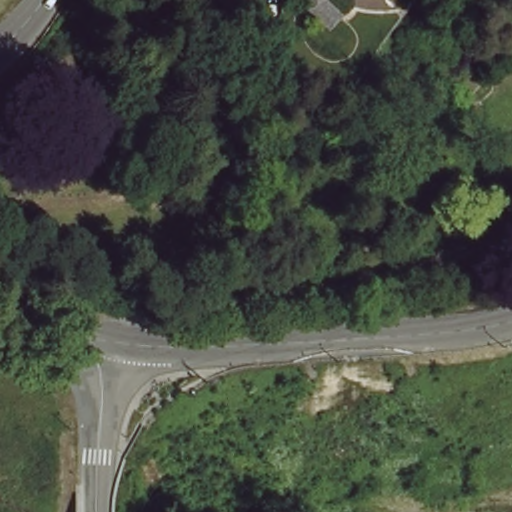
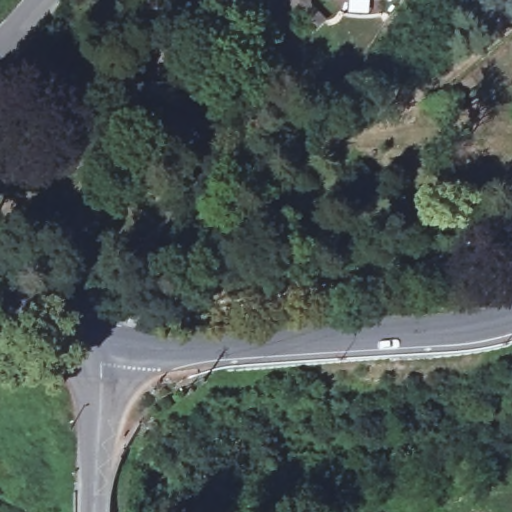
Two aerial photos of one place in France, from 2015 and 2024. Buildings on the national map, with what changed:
[]

